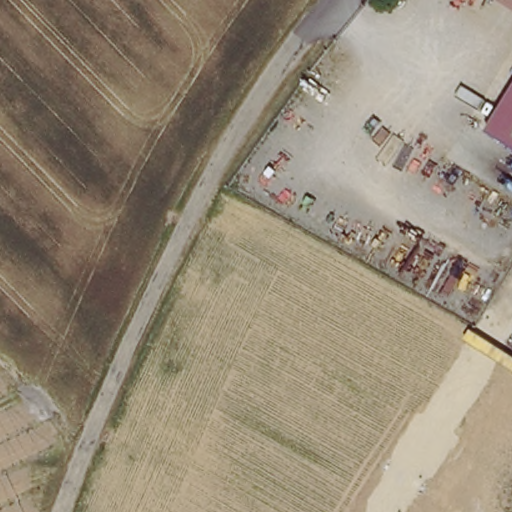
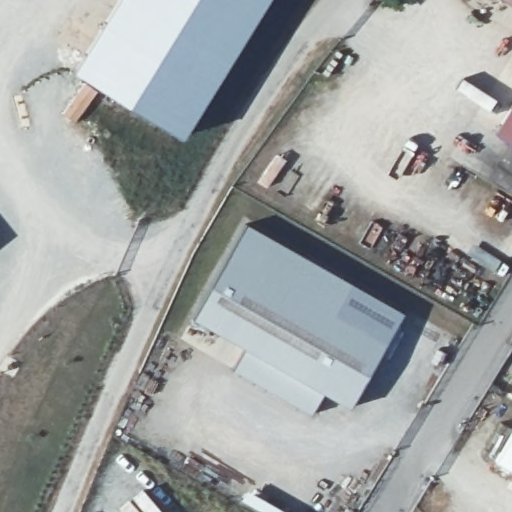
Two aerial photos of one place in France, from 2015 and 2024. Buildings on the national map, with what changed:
new [(181,141),(72,71),(116,0),(267,0),(181,141)]
unchanged [(508,0),(512,0),(512,3),(508,0)]
demolished [(348,65),(377,82),(365,102),(336,84),(348,65)]
unchanged [(512,105),(512,148),(492,136),(512,105)]
new [(348,282),(331,312),(384,342),(349,406),(323,392),(309,414),(230,369),(242,347),(189,317),(241,225),(348,282)]
demolished [(24,512),(0,512),(0,400),(48,449),(4,469),(24,512)]
new [(494,463),(512,431),(512,473),(494,463)]

